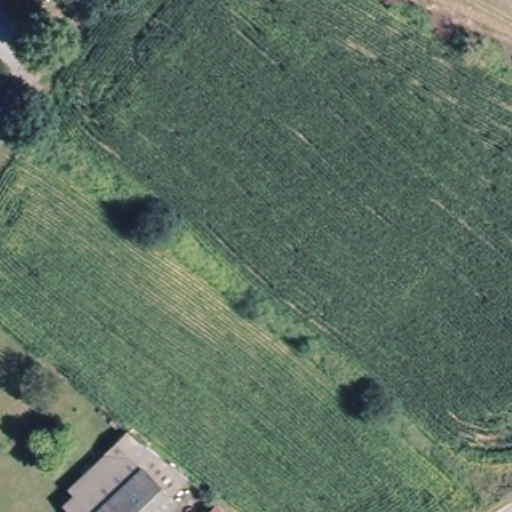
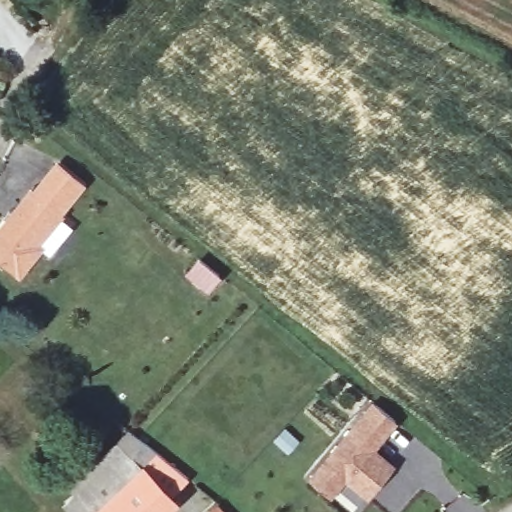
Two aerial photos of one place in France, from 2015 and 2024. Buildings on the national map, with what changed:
new [(39,243),(44,246),(19,276),(0,260),(0,222),(29,186),(33,189),(54,160),(83,183),(39,243)]
new [(375,448),(394,464),(367,498),(345,481),(331,497),(308,478),(372,400),(396,422),(375,448)]
unchanged [(80,413),(59,430),(51,421),(71,403),(80,413)]
unchanged [(75,500),(60,483),(108,440),(117,450),(130,437),(152,455),(188,484),(169,501),(171,504),(163,512),(67,512),(65,510),(75,500)]
unchanged [(212,510),(215,512),(209,512),(212,510)]

